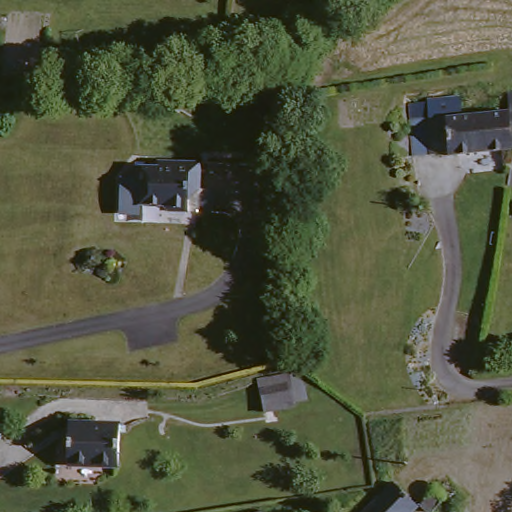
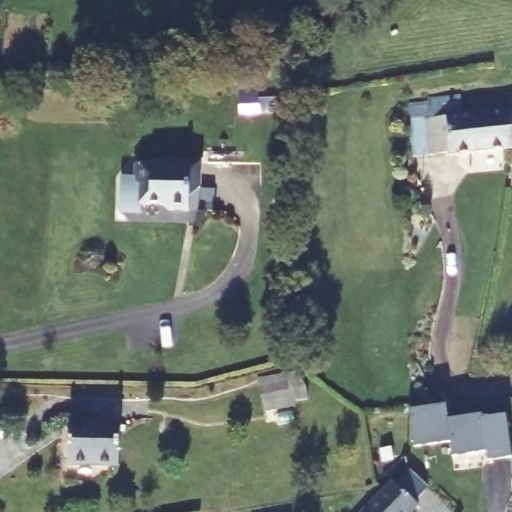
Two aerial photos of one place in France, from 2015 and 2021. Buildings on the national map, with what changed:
unchanged [(254,120),(255,86),(274,86),(273,120),(254,120)]
unchanged [(442,153),(425,154),(422,118),(438,116),(512,111),(512,151),(511,154),(443,161),(442,153)]
unchanged [(511,154),(512,151),(512,154),(511,154)]
unchanged [(201,190),(196,190),(190,196),(190,214),(170,213),(165,207),(141,206),(141,189),(136,184),(136,168),(159,169),(159,164),(202,165),(201,190)]
unchanged [(306,409),(270,417),(267,377),(303,372),(306,409)]
new [(410,409),(446,404),(448,419),(485,415),(485,419),(506,416),(512,454),(512,458),(487,462),(486,452),(452,457),(450,443),(415,448),(410,409)]
unchanged [(112,473),(70,469),(74,422),(117,424),(112,473)]
new [(400,481),(411,470),(429,487),(417,499),(400,481)]
unchanged [(421,503),(423,504),(416,512),(362,512),(396,478),(421,503)]

